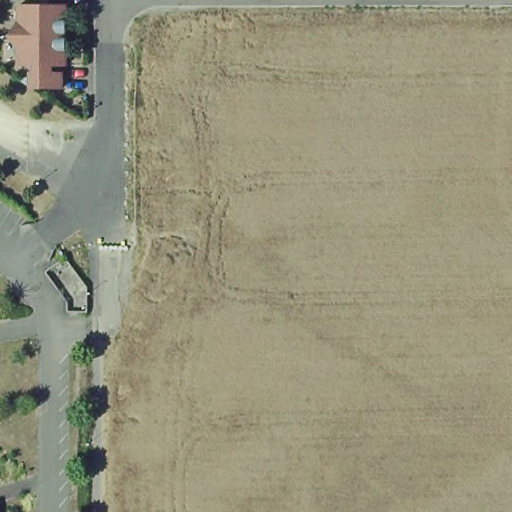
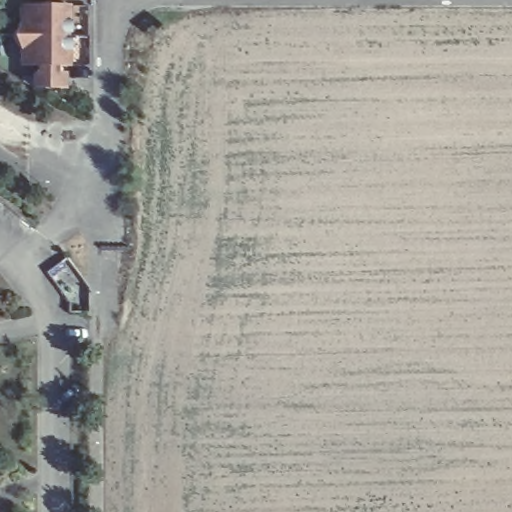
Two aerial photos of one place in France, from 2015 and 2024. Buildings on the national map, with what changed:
unchanged [(23,0),(54,0),(54,4),(23,4),(23,0)]
unchanged [(10,28),(10,11),(58,11),(58,40),(56,40),(56,41),(2,41),(10,28)]
unchanged [(27,72),(10,72),(10,55),(2,41),(56,41),(56,44),(58,44),(58,72),(44,72),(44,80),(54,80),(54,95),(25,95),(23,95),(23,94),(23,80),(27,79),(27,72)]

